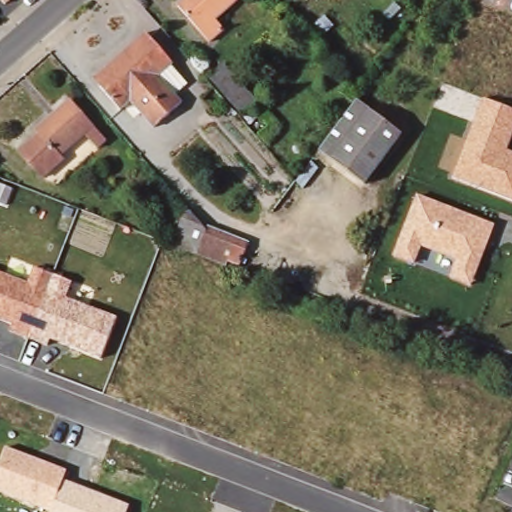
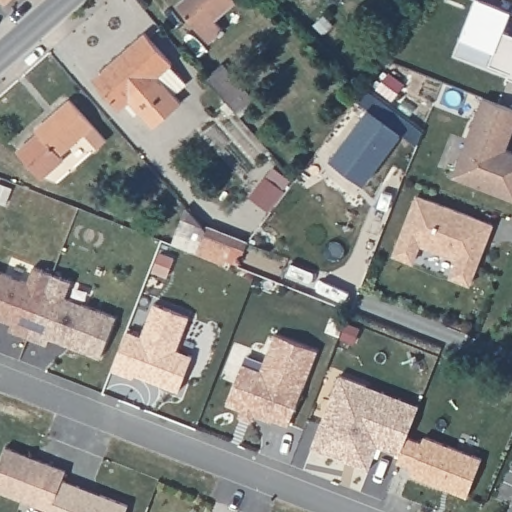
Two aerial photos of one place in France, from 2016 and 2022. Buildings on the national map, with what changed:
unchanged [(4,7),(0,3),(0,0),(12,0),(4,7)]
unchanged [(178,5),(183,0),(236,0),(237,1),(216,19),(224,30),(208,44),(178,5)]
new [(512,11),(512,14),(506,30),(512,32),(512,76),(510,76),(511,71),(491,62),(496,50),(462,36),(476,0),(484,0),(512,11)]
unchanged [(130,104),(124,110),(95,77),(148,32),(175,64),(170,69),(179,81),(169,90),(184,107),(153,131),(130,104)]
unchanged [(211,83),(224,72),(254,110),(240,122),(211,83)]
unchanged [(483,97),(512,108),(512,134),(507,150),(512,151),(512,199),(454,177),(483,97)]
unchanged [(400,134),(366,181),(324,146),(358,102),(400,134)]
unchanged [(49,125),(70,106),(110,147),(97,157),(84,140),(68,152),(60,157),(39,175),(21,153),(39,135),(49,125)]
new [(294,182),(271,212),(249,196),(270,166),(294,182)]
unchanged [(451,277),(456,257),(423,245),(416,261),(396,254),(419,195),(496,221),(473,285),(451,277)]
unchanged [(234,271),(227,269),(196,255),(171,245),(190,206),(208,229),(209,225),(247,252),(240,272),(234,271)]
unchanged [(29,282),(35,267),(74,282),(67,297),(116,317),(101,359),(51,338),(46,347),(8,332),(11,323),(0,319),(0,272),(29,282)]
new [(190,317),(178,350),(194,356),(180,393),(135,375),(133,380),(112,372),(128,329),(142,335),(154,304),(190,317)]
new [(318,350),(289,428),(255,416),(253,422),(236,417),(240,409),(226,404),(241,362),(261,370),(274,333),(318,350)]
new [(421,405),(401,456),(377,447),(369,470),(311,449),(339,373),(421,405)]
unchanged [(64,481),(132,506),(129,512),(52,512),(0,493),(0,463),(7,447),(68,470),(64,481)]

